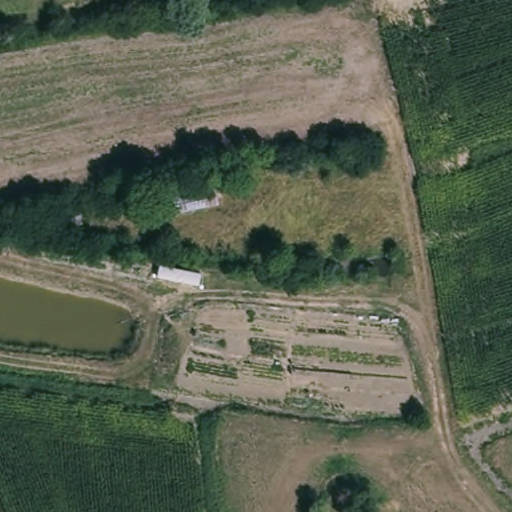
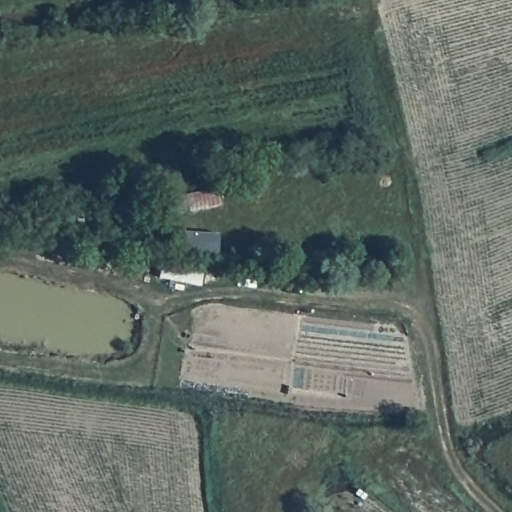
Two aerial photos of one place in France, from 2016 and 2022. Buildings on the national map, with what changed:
unchanged [(225,213),(177,223),(172,201),(221,191),(225,213)]

